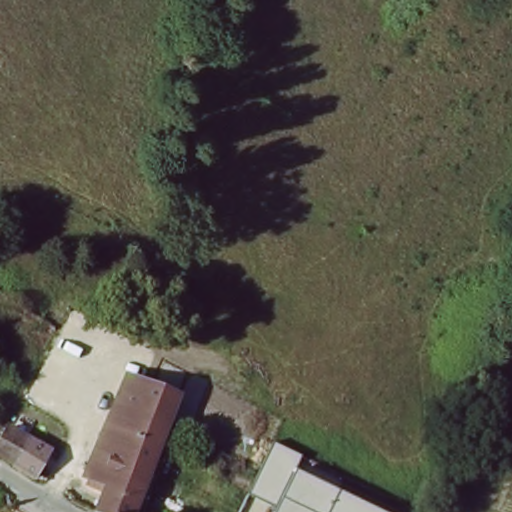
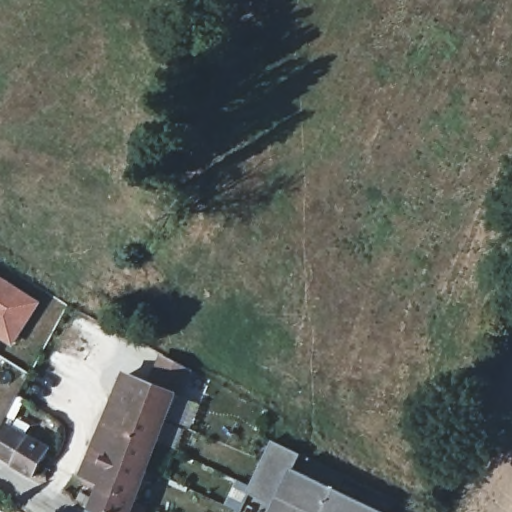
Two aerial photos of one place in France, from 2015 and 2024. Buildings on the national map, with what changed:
new [(12,347),(0,340),(0,275),(41,302),(12,347)]
unchanged [(91,482),(130,380),(183,401),(140,512),(101,512),(110,488),(91,482)]
unchanged [(0,453),(0,441),(11,423),(53,448),(36,475),(0,453)]
unchanged [(248,494),(273,443),(301,457),(296,470),(381,512),(275,512),(276,508),(248,494)]

